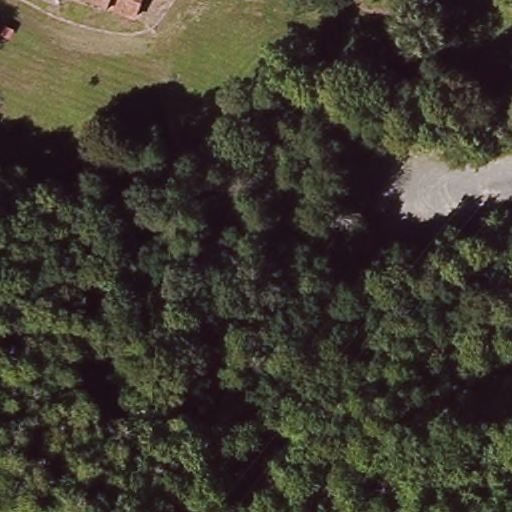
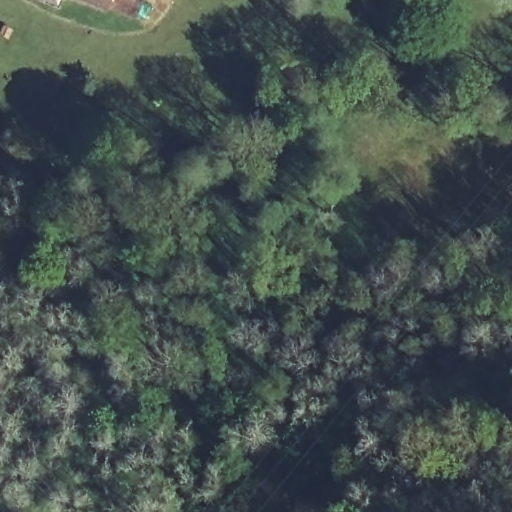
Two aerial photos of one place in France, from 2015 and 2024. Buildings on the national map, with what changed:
unchanged [(138,7),(120,0),(141,0),(138,7)]

